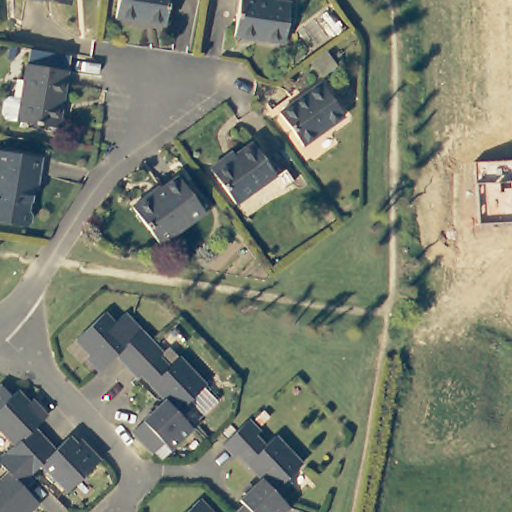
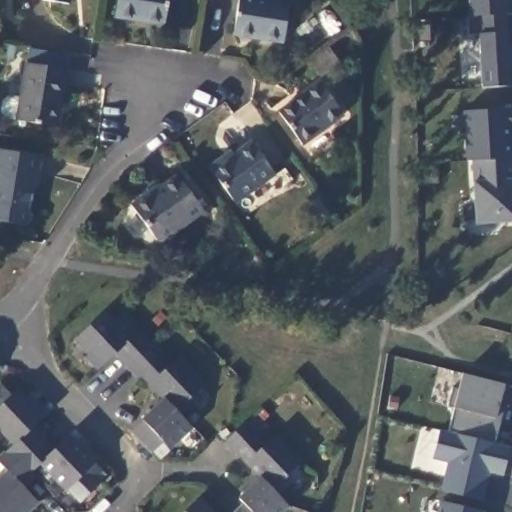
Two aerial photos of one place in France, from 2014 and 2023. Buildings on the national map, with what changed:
unchanged [(52,0),(59,0),(59,1),(52,0)]
unchanged [(165,0),(161,21),(111,13),(114,0),(165,0)]
unchanged [(286,0),(281,40),(231,33),(236,0),(286,0)]
new [(481,89),(479,35),(467,36),(466,17),(469,16),(468,0),(507,0),(510,87),(481,89)]
unchanged [(24,63),(65,71),(56,126),(14,120),(24,63)]
unchanged [(344,117),(304,146),(280,114),(320,85),(344,117)]
new [(464,162),(462,111),(512,108),(512,160),(475,162),(464,162)]
unchanged [(274,176),(234,205),(209,170),(226,158),(230,164),(253,146),(274,176)]
unchanged [(29,170),(24,207),(28,212),(27,218),(21,222),(0,219),(0,148),(36,152),(35,170),(29,170)]
unchanged [(512,160),(512,222),(479,224),(476,183),(475,162),(512,160)]
unchanged [(203,213),(158,244),(131,207),(150,193),(153,196),(178,178),(203,213)]
unchanged [(161,350),(157,354),(166,363),(175,355),(203,383),(189,398),(191,400),(178,413),(191,425),(170,446),(164,440),(151,452),(138,436),(131,428),(165,398),(158,391),(139,371),(116,349),(111,354),(96,368),(95,366),(83,355),(88,350),(75,338),(103,310),(113,320),(122,311),(161,350)]
new [(497,420),(493,443),(510,447),(503,476),(489,473),(482,502),(440,493),(447,463),(430,459),(437,429),(443,431),(449,409),(444,407),(450,388),(457,389),(462,375),(506,384),(497,420)]
unchanged [(81,449),(84,446),(96,459),(65,489),(39,462),(18,482),(36,501),(24,512),(22,512),(20,510),(17,512),(0,512),(0,475),(6,470),(0,463),(0,453),(11,442),(0,430),(0,383),(9,393),(14,388),(31,406),(34,403),(44,414),(30,427),(51,449),(66,434),(81,449)]
unchanged [(241,509),(246,504),(240,496),(261,477),(231,445),(225,439),(248,417),(258,428),(254,432),(264,442),(275,432),(301,461),(287,474),(291,479),(276,492),(288,504),(279,512),(237,512),(241,509)]
unchanged [(200,497),(213,512),(183,512),(200,497)]
new [(439,502),(481,512),(436,512),(439,502)]

